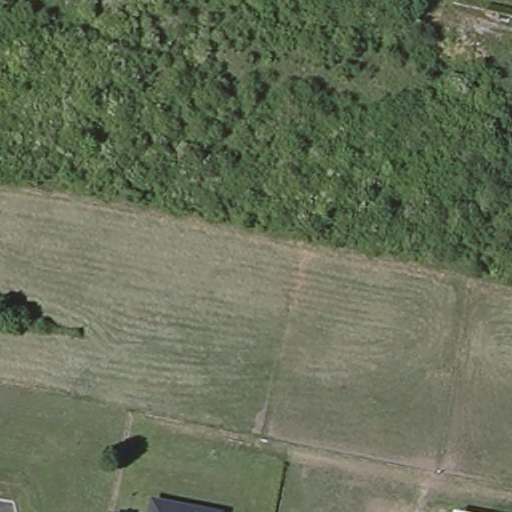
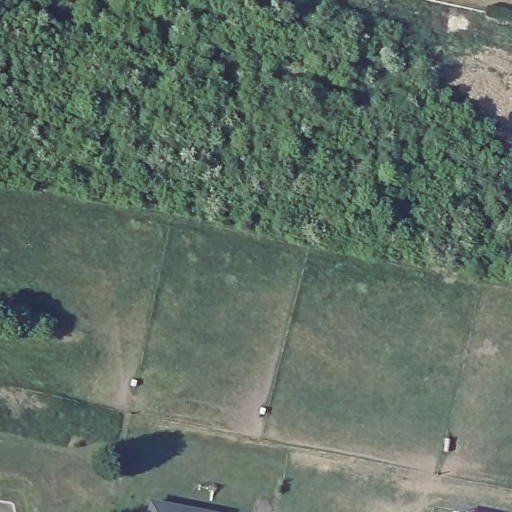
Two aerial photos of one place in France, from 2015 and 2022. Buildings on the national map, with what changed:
unchanged [(219,512),(149,512),(151,499),(220,511),(219,512)]
unchanged [(450,512),(451,510),(464,512),(450,512)]

